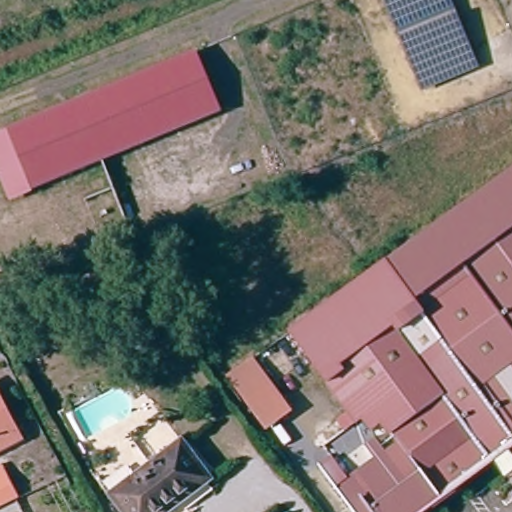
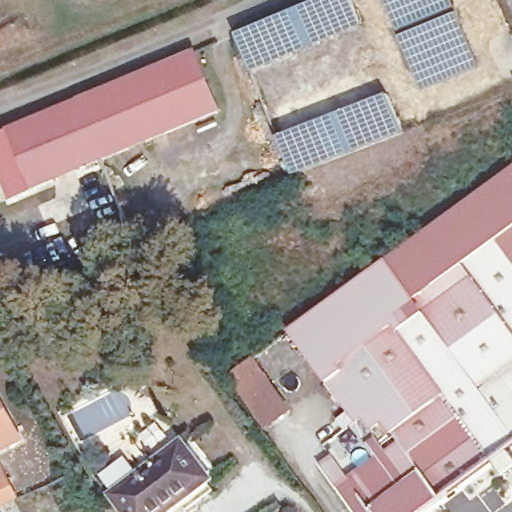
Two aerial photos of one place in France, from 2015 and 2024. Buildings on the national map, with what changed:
new [(351,0),(362,26),(251,72),(234,31),(305,0),(351,0)]
unchanged [(420,87),(387,0),(451,0),(477,66),(420,87)]
unchanged [(80,98),(195,50),(220,109),(104,157),(80,98)]
new [(388,94),(403,132),(292,177),(276,136),(388,94)]
unchanged [(104,157),(14,196),(0,164),(0,132),(80,98),(104,157)]
unchanged [(433,490),(402,512),(357,512),(318,457),(328,451),(344,471),(371,452),(360,438),(370,431),(360,417),(356,419),(347,406),(290,325),(512,166),(512,432),(453,475),(468,494),(448,508),(433,490)]
unchanged [(252,357),(291,412),(267,430),(227,376),(252,357)]
unchanged [(20,433),(0,444),(0,390),(20,433)]
unchanged [(150,467),(180,444),(207,481),(166,512),(121,512),(110,498),(150,467)]
unchanged [(14,499),(0,506),(0,470),(14,499)]

